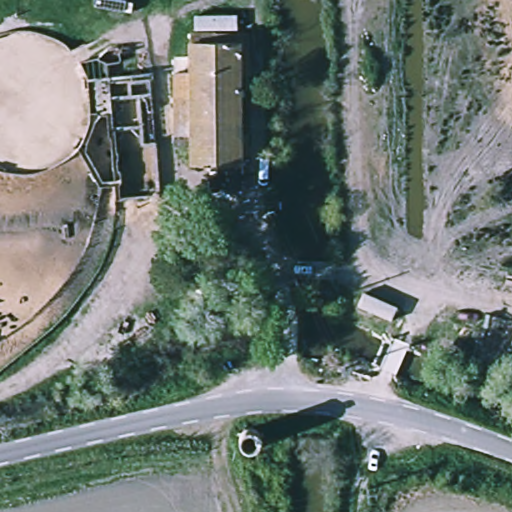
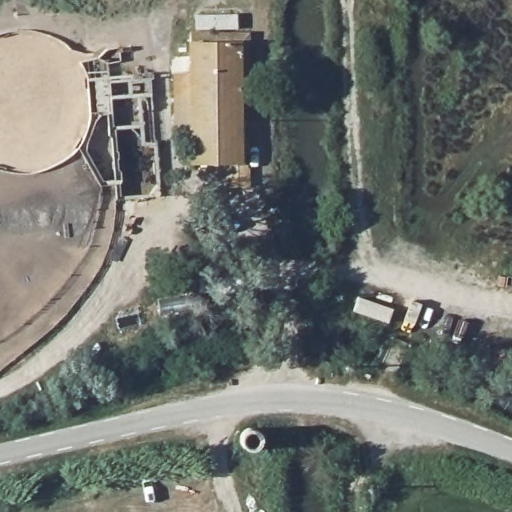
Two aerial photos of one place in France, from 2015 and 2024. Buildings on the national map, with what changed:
unchanged [(240,160),(188,159),(186,129),(171,125),(168,60),(183,59),(185,19),(241,22),(240,160)]
unchanged [(91,105),(88,74),(108,73),(107,104),(91,105)]

